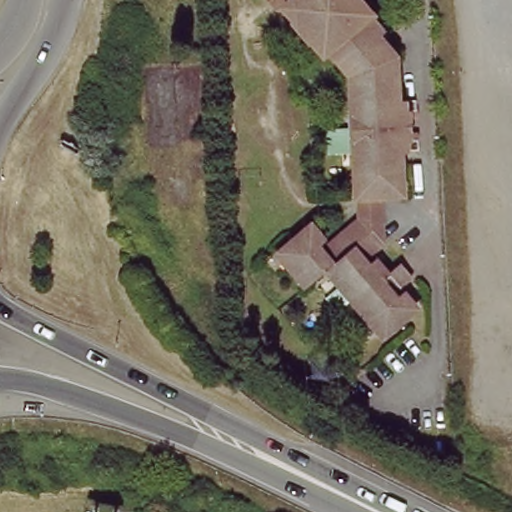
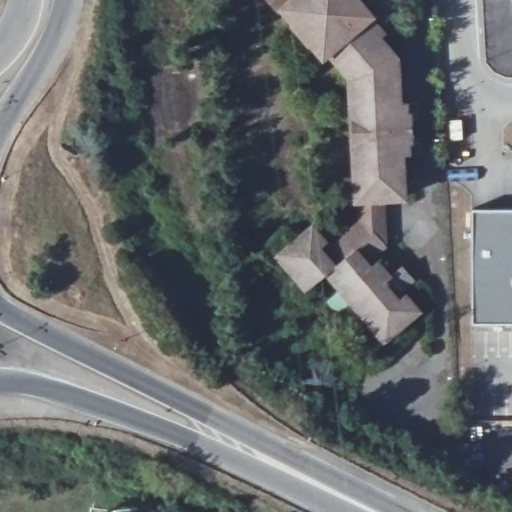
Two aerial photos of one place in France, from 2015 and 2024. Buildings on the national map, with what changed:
unchanged [(333,26),(326,34),(298,7),(285,20),(268,2),(270,0),(360,0),(333,26)]
unchanged [(360,0),(368,0),(413,44),(414,99),(424,100),(426,154),(416,155),(418,192),(393,192),(379,192),(371,193),(364,56),(333,26),(360,0)]
unchanged [(370,290),(341,260),(350,250),(340,239),(350,229),(364,216),(381,218),(379,192),(393,192),(395,228),(382,241),(401,262),(370,290)]
unchanged [(340,239),(350,250),(341,260),(327,274),(298,245),(331,210),(350,229),(340,239)]
new [(473,210),(512,210),(512,324),(472,325),(473,210)]
unchanged [(415,250),(426,262),(414,274),(430,294),(400,321),(370,290),(401,262),(415,250)]

